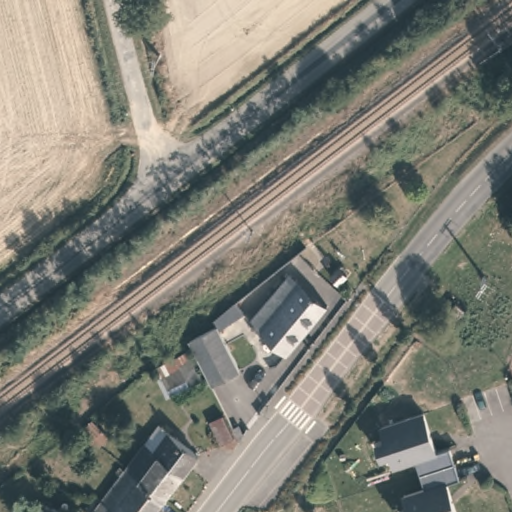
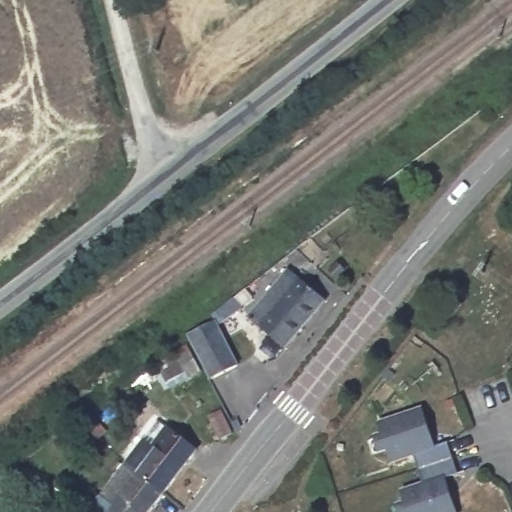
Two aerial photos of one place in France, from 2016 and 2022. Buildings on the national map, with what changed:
unchanged [(287,346),(249,315),(288,269),(326,300),(287,346)]
unchanged [(453,315),(445,309),(455,296),(463,301),(453,315)]
unchanged [(216,322),(241,366),(214,383),(189,338),(216,322)]
unchanged [(166,390),(152,363),(187,344),(201,370),(166,390)]
unchanged [(403,490),(424,482),(414,454),(393,461),(379,422),(422,407),(435,445),(448,440),(459,472),(446,476),(458,512),(410,512),(403,490)]
unchanged [(233,432),(221,438),(209,415),(221,409),(233,432)]
unchanged [(98,437),(82,422),(91,415),(106,430),(98,437)]
unchanged [(157,418),(166,425),(197,448),(164,492),(125,460),(144,436),(157,418)]
unchanged [(73,440),(65,432),(73,425),(82,432),(73,440)]
unchanged [(164,492),(148,512),(143,512),(122,495),(125,491),(111,480),(125,460),(164,492)]
unchanged [(111,480),(125,491),(122,495),(143,512),(89,512),(87,510),(96,498),(111,480)]
unchanged [(62,512),(46,512),(37,507),(41,497),(64,508),(62,512)]

